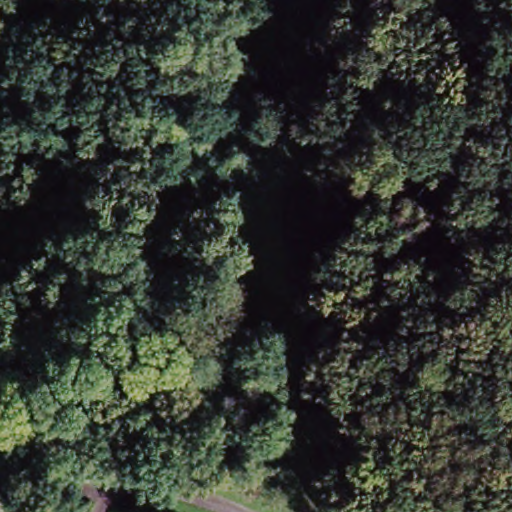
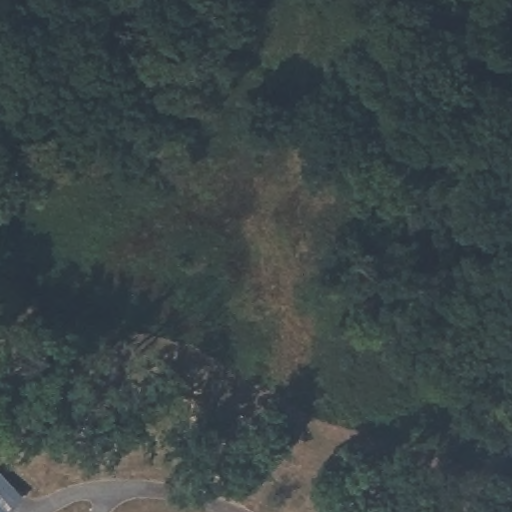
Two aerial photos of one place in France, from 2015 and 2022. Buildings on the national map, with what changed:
new [(26,495),(8,512),(0,512),(0,469),(26,495)]

